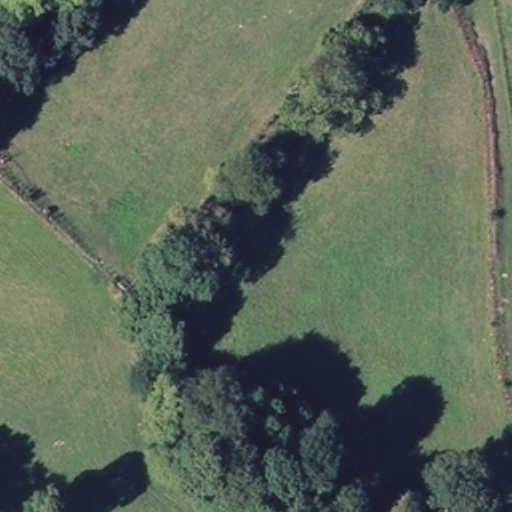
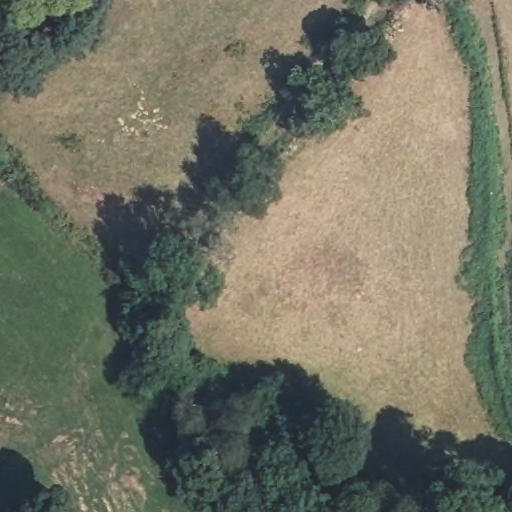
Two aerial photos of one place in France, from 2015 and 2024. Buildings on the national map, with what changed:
[]

